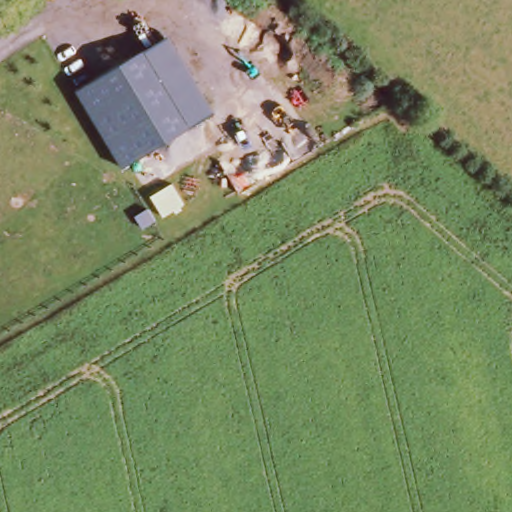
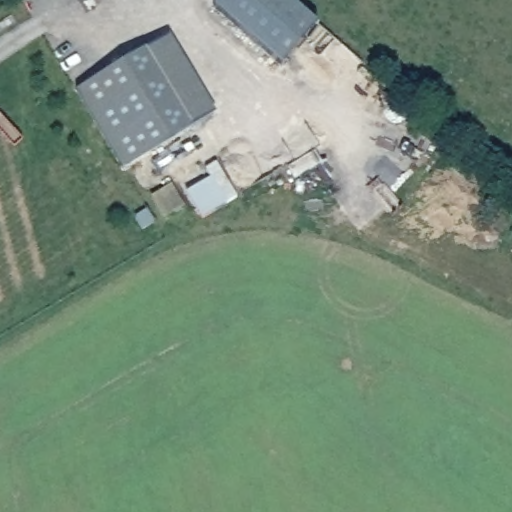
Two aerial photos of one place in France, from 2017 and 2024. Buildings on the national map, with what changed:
new [(285,66),(218,6),(223,0),(294,0),(321,25),(285,66)]
unchanged [(78,89),(172,34),(215,110),(125,168),(78,89)]

